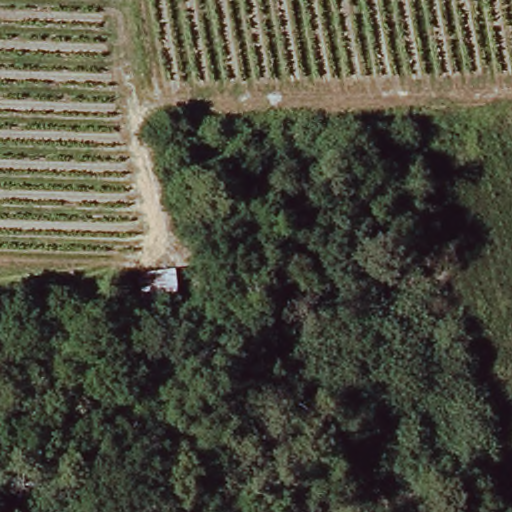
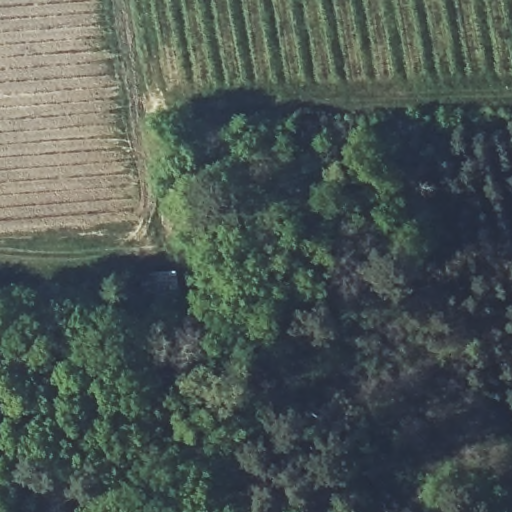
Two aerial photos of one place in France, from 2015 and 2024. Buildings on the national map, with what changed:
unchanged [(179,313),(144,316),(140,279),(174,270),(179,313)]

